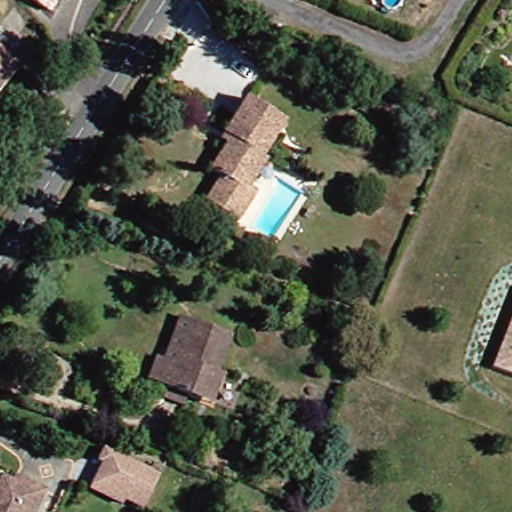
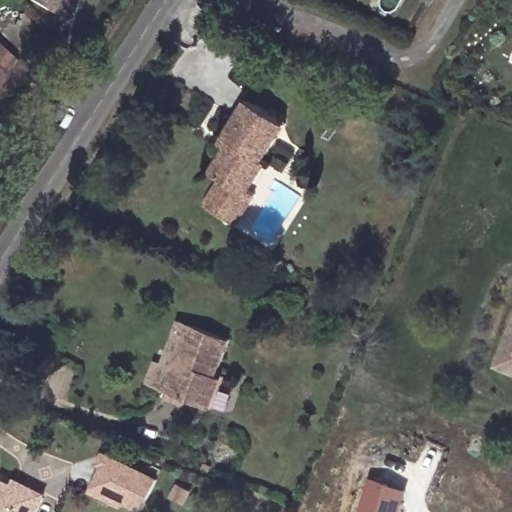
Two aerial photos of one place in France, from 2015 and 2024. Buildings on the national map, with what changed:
unchanged [(70,2),(66,0),(71,0),(70,2)]
unchanged [(22,68),(0,94),(0,48),(22,68)]
unchanged [(4,99),(0,103),(0,96),(4,99)]
unchanged [(237,223),(211,208),(226,182),(216,176),(230,153),(221,147),(227,137),(250,101),(277,117),(287,124),(276,142),(265,161),(268,163),(254,190),(261,195),(251,211),(241,226),(237,223)]
unchanged [(512,317),(512,374),(493,367),(512,317)]
unchanged [(166,397),(170,385),(192,319),(232,334),(220,367),(226,370),(215,401),(205,398),(192,393),(188,404),(166,397)]
unchanged [(100,457),(105,459),(150,480),(135,512),(116,504),(115,508),(88,496),(82,494),(100,457)]
unchanged [(14,484),(16,476),(29,482),(47,490),(37,512),(0,512),(0,477),(14,484)]
new [(411,488),(404,512),(361,512),(372,477),(411,488)]

